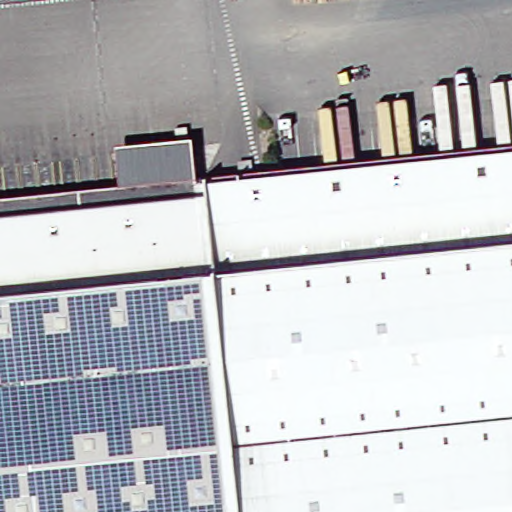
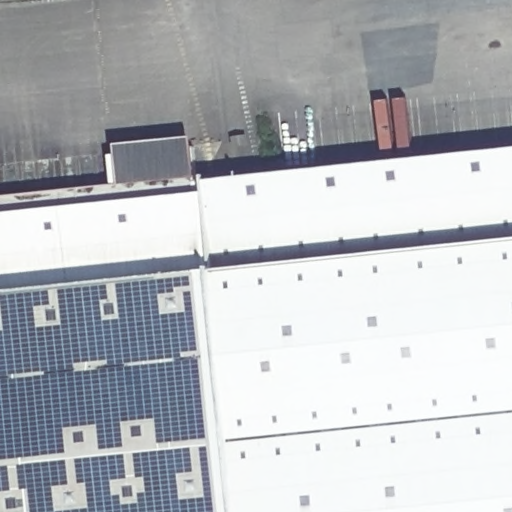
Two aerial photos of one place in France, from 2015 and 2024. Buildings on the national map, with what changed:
unchanged [(103,153),(180,146),(184,176),(106,184),(103,153)]
unchanged [(202,179),(325,167),(512,148),(512,512),(237,512),(202,179)]
unchanged [(0,195),(106,184),(184,176),(194,175),(195,180),(202,179),(237,512),(0,512),(0,195)]

